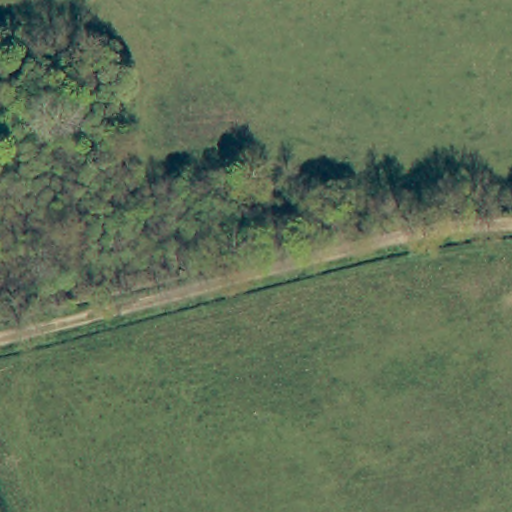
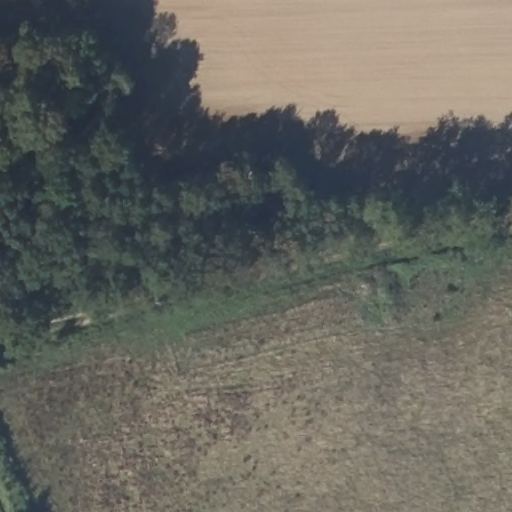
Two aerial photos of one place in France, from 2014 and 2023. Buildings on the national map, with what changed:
[]

